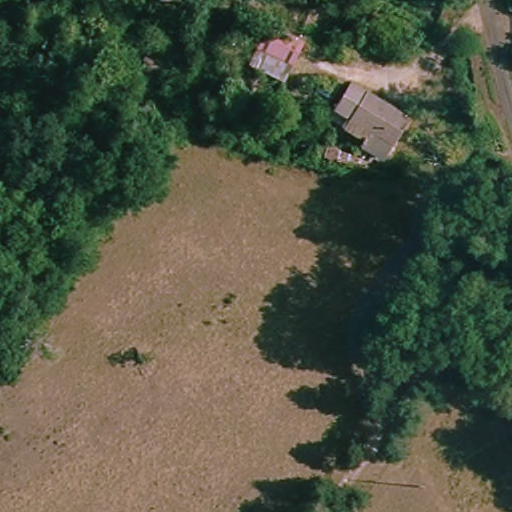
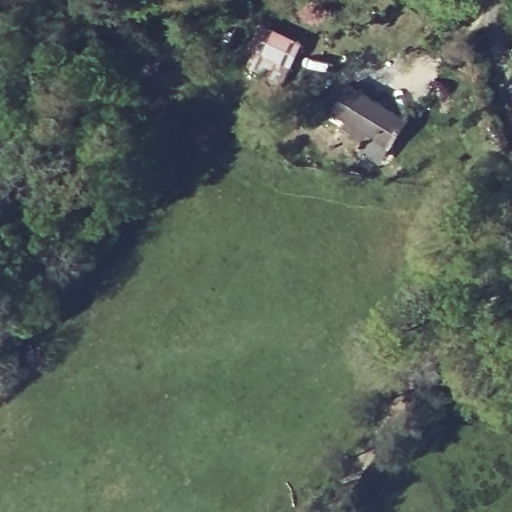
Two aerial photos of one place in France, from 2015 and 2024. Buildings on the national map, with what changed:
unchanged [(283,82),(249,65),(268,27),(303,42),(283,82)]
unchanged [(334,104),(350,79),(408,116),(383,156),(360,142),(370,126),(334,104)]

